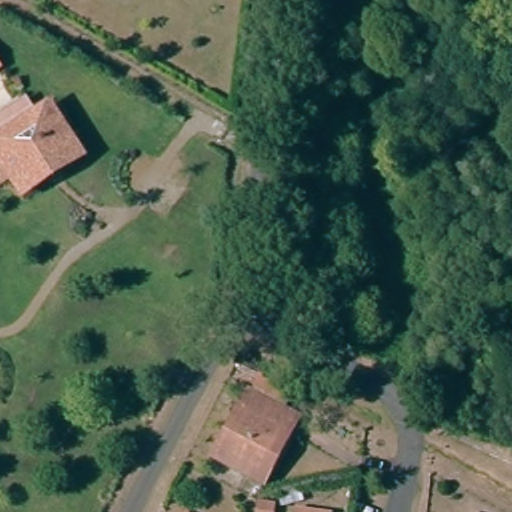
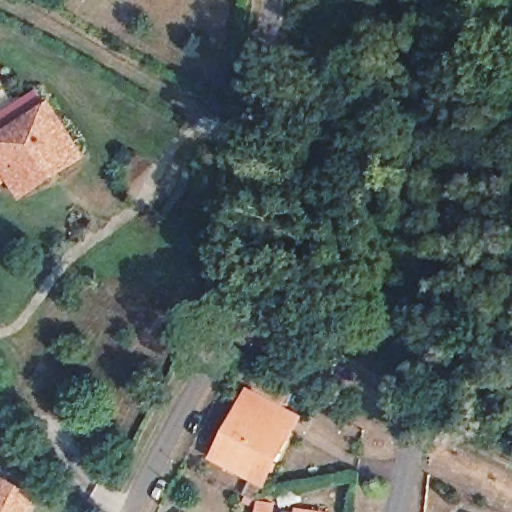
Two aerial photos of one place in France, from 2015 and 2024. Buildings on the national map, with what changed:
unchanged [(0,70),(0,63),(4,67),(0,70)]
unchanged [(38,112),(0,136),(0,114),(26,96),(38,112)]
unchanged [(0,153),(3,151),(0,146),(0,136),(56,100),(88,153),(68,166),(46,179),(28,191),(15,172),(3,180),(0,176),(0,153)]
unchanged [(295,395),(288,408),(257,392),(262,378),(295,395)]
unchanged [(258,480),(217,460),(249,395),(299,420),(292,434),(265,483),(258,480)]
new [(32,512),(0,512),(0,475),(40,494),(32,512)]
unchanged [(274,512),(259,512),(260,502),(275,504),(274,512)]

